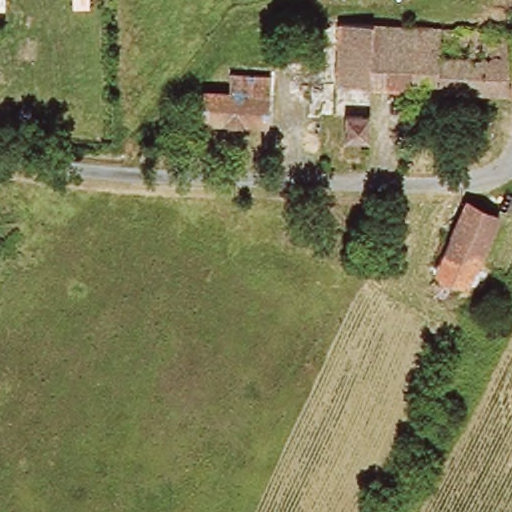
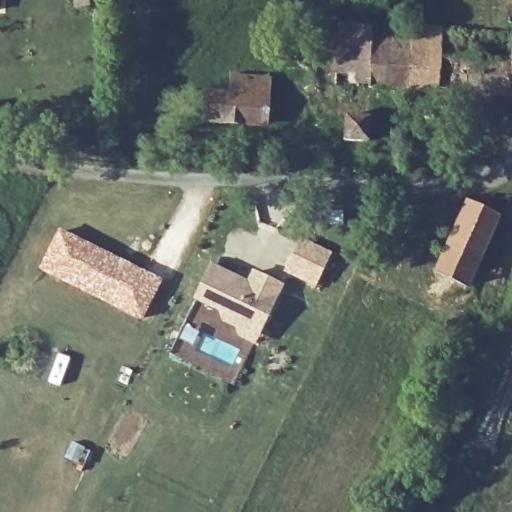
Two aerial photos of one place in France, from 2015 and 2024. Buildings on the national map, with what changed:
unchanged [(314,100),(314,89),(314,77),(305,77),(308,18),(343,19),(344,10),(367,11),(367,22),(419,25),(416,87),(374,85),(370,137),(337,135),(339,112),(326,111),(326,101),(314,100)]
unchanged [(416,87),(419,25),(482,30),(512,33),(512,95),(416,87)]
unchanged [(230,94),(231,75),(272,76),(270,123),(204,120),(205,94),(230,94)]
unchanged [(500,219),(471,287),(440,273),(470,205),(500,219)]
new [(61,232),(161,281),(143,318),(44,269),(61,232)]
new [(285,274),(300,239),(333,253),(316,288),(285,274)]
new [(194,300),(212,263),(248,281),(254,270),(285,285),(257,345),(239,337),(236,330),(224,323),(218,311),(194,300)]

